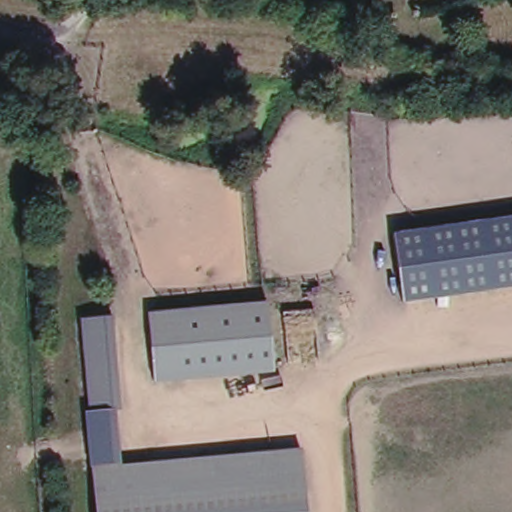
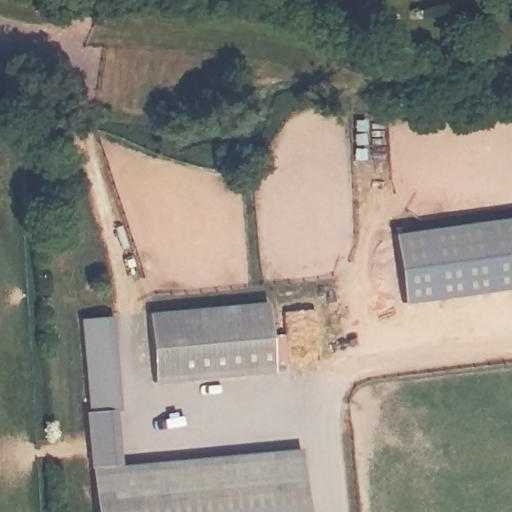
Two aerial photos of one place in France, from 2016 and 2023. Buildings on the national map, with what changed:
unchanged [(392,234),(512,217),(512,286),(402,302),(392,234)]
unchanged [(266,302),(273,370),(151,382),(147,314),(266,302)]
unchanged [(112,316),(120,410),(88,413),(79,318),(112,316)]
unchanged [(115,411),(120,468),(90,470),(88,413),(115,411)]
unchanged [(305,512),(94,512),(90,470),(298,453),(305,512)]

